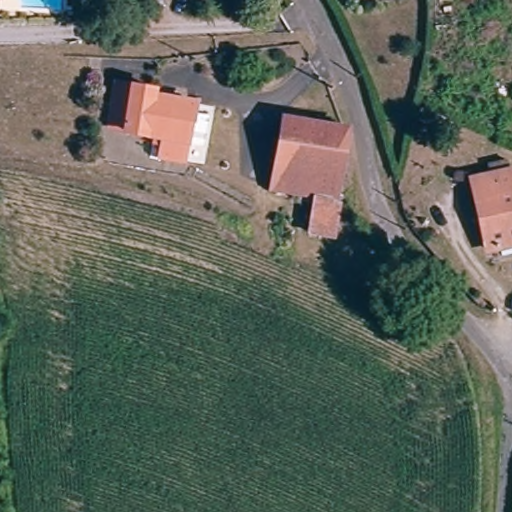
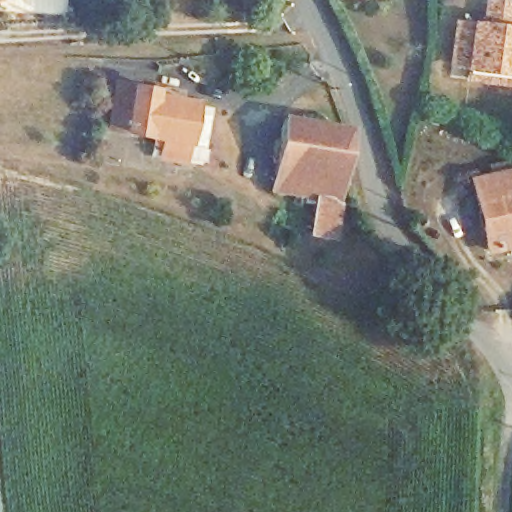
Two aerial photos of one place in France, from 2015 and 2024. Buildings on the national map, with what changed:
new [(483,21),(485,0),(496,0),(512,2),(512,87),(467,81),(467,70),(450,68),(455,21),(474,20),(483,21)]
unchanged [(140,123),(100,116),(106,74),(147,80),(146,85),(140,123)]
unchanged [(186,102),(202,105),(197,135),(181,132),(178,151),(153,147),(155,135),(146,133),(147,124),(140,123),(146,85),(187,92),(186,102)]
unchanged [(334,234),(333,239),(309,235),(316,195),(272,187),(285,116),(351,127),(338,200),(336,209),(334,234)]
unchanged [(490,250),(473,181),(491,177),(489,166),(508,161),(510,172),(512,180),(512,245),(490,250)]

